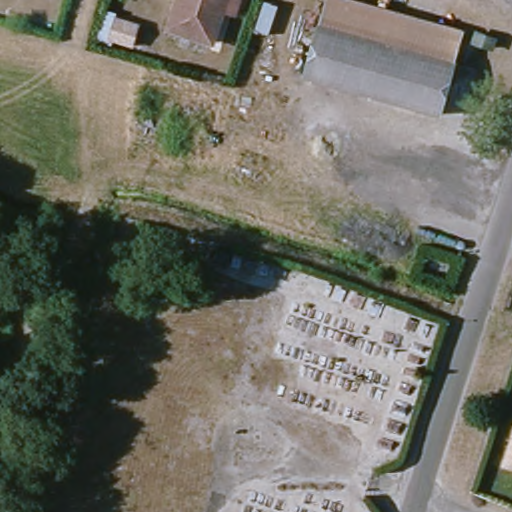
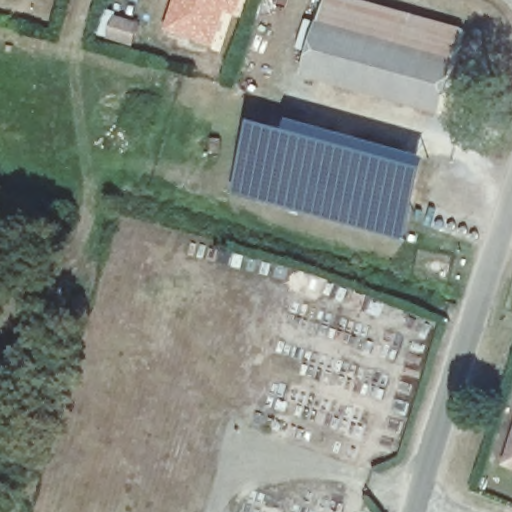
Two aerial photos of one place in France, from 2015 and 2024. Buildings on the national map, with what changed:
unchanged [(167,33),(178,0),(227,0),(212,48),(167,33)]
unchanged [(462,44),(445,96),(315,58),(330,5),(462,44)]
new [(255,120),(290,129),(292,118),(403,149),(431,159),(407,242),(236,195),(255,120)]

